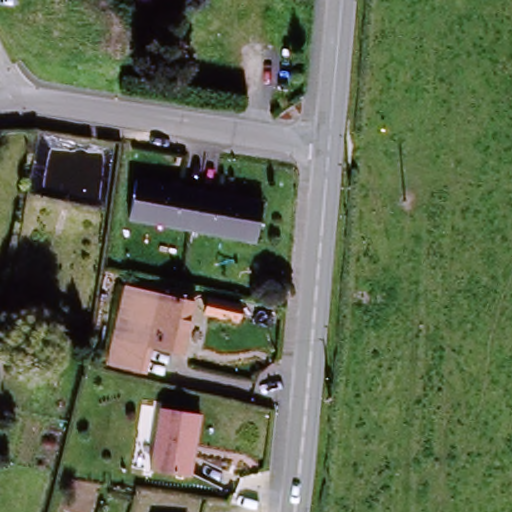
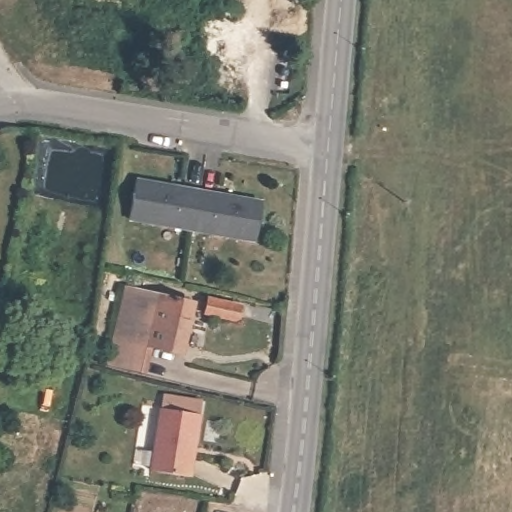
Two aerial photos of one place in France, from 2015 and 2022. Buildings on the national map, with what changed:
unchanged [(261,201),(251,242),(126,223),(133,181),(261,201)]
unchanged [(146,348),(153,350),(145,379),(102,371),(121,288),(159,295),(146,348)]
unchanged [(153,350),(146,348),(159,295),(195,302),(184,357),(153,350)]
unchanged [(243,312),(238,327),(208,317),(214,303),(243,312)]
unchanged [(195,414),(185,475),(145,468),(156,406),(195,414)]

